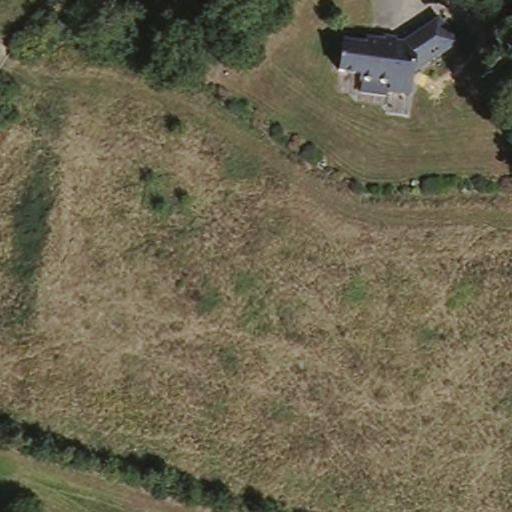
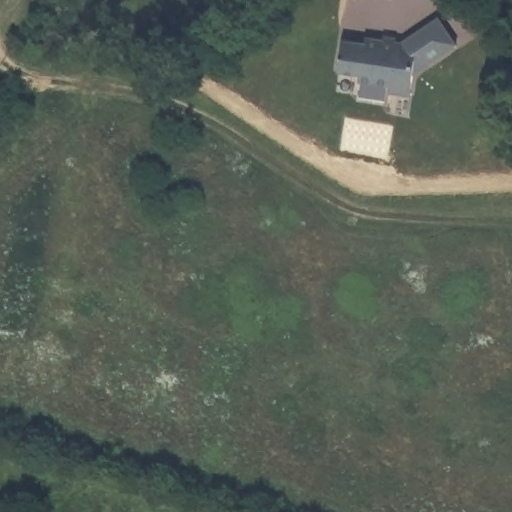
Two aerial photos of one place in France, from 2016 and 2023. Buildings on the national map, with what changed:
unchanged [(364,50),(365,44),(383,48),(382,51),(396,53),(396,49),(403,50),(412,44),(410,42),(438,22),(457,48),(430,68),(425,62),(416,69),(411,102),(389,100),(390,92),(389,92),(360,87),(361,80),(340,77),(344,47),(364,50)]

